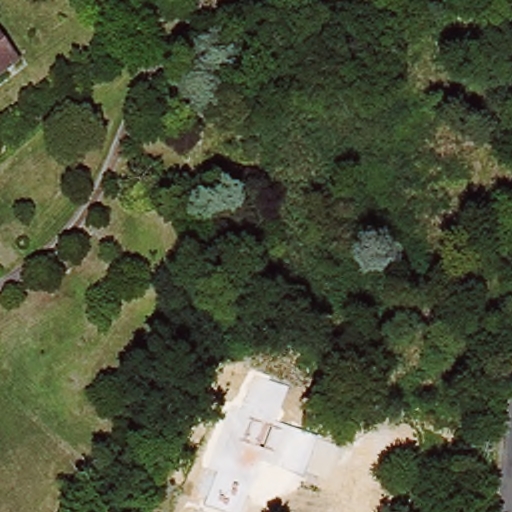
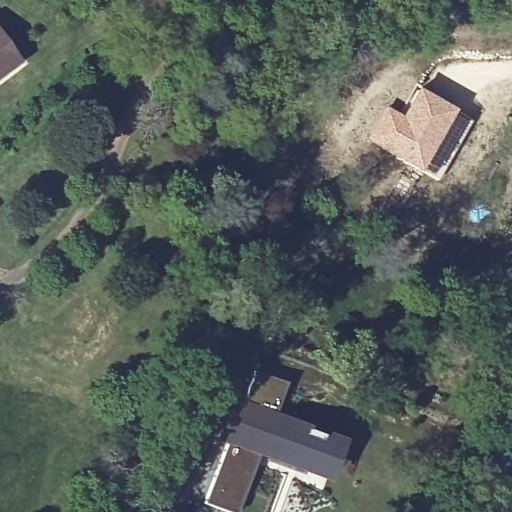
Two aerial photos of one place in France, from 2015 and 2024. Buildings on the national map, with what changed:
unchanged [(0,73),(0,40),(15,62),(0,73)]
new [(417,91),(451,110),(418,170),(383,150),(417,91)]
new [(451,110),(470,121),(436,180),(418,170),(451,110)]
new [(326,470),(305,462),(302,468),(255,449),(232,508),(201,496),(227,431),(219,427),(231,395),(240,399),(253,364),(283,376),(270,411),(317,429),(338,438),(326,470)]

